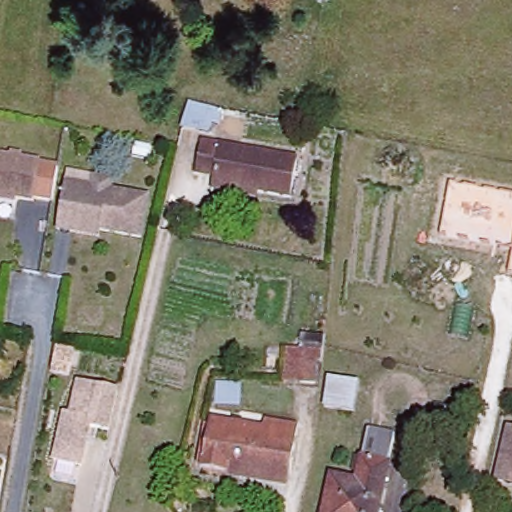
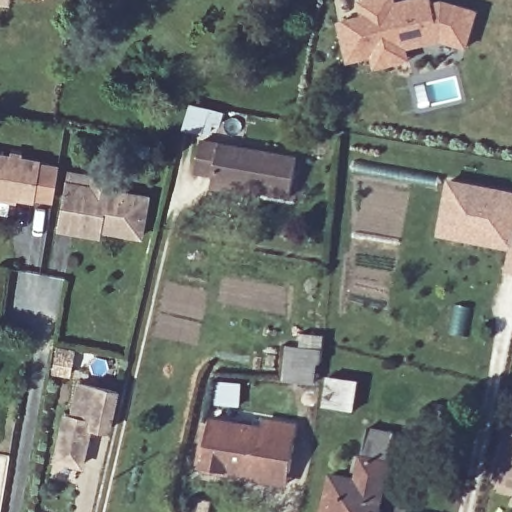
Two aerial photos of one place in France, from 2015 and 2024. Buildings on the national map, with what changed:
new [(8,6),(0,5),(0,0),(9,0),(8,6)]
new [(345,62),(336,27),(360,21),(357,7),(381,0),(391,0),(393,9),(427,1),(429,6),(430,9),(440,6),(475,16),(464,52),(440,44),(402,53),(405,65),(373,72),(370,56),(345,62)]
unchanged [(293,196),(218,183),(217,174),(201,170),(207,138),(299,155),(293,196)]
unchanged [(0,197),(0,156),(39,163),(34,203),(0,197)]
unchanged [(51,202),(35,199),(39,163),(57,167),(51,202)]
unchanged [(59,226),(65,192),(67,179),(93,184),(94,175),(112,178),(110,187),(147,194),(139,233),(100,226),(98,234),(59,226)]
new [(512,272),(506,271),(509,249),(437,236),(447,178),(512,190),(512,272)]
unchanged [(287,368),(282,366),(287,347),(297,349),(299,339),(326,344),(318,388),(285,382),(287,368)]
unchanged [(325,375),(361,380),(357,414),(321,410),(325,375)]
unchanged [(65,464),(53,462),(64,414),(72,415),(79,382),(81,382),(119,392),(111,435),(88,430),(86,437),(80,467),(65,464)]
unchanged [(276,435),(277,425),(302,430),(293,475),(234,465),(230,478),(200,472),(213,421),(276,435)]
unchanged [(358,479),(369,431),(393,435),(379,512),(324,512),(332,475),(358,479)]
unchanged [(512,481),(512,485),(511,485),(512,481)]

